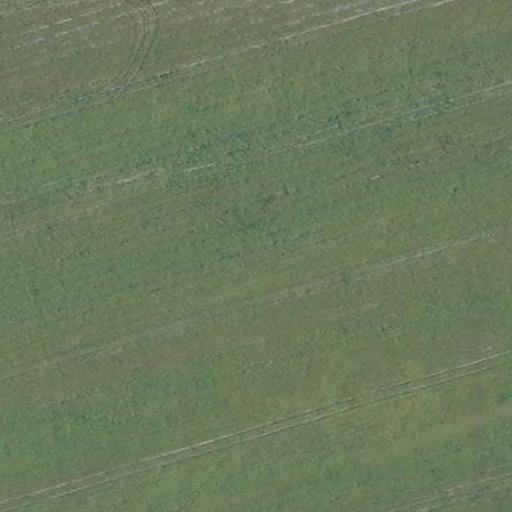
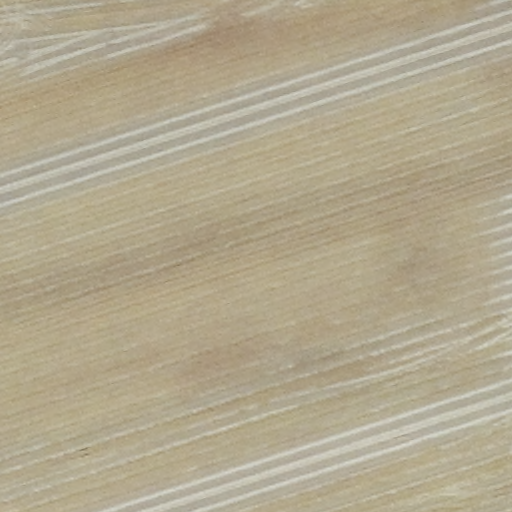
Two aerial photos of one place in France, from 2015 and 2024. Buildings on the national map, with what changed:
[]

